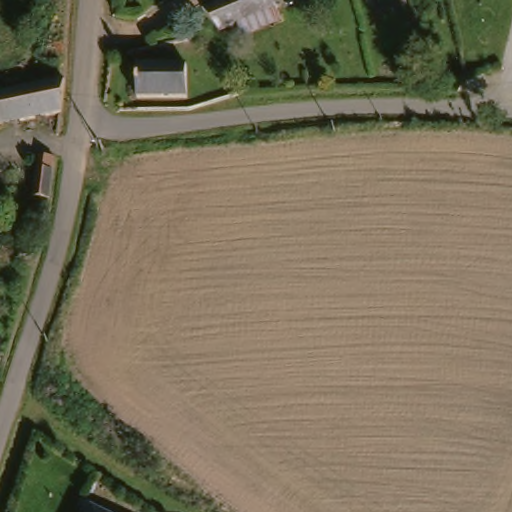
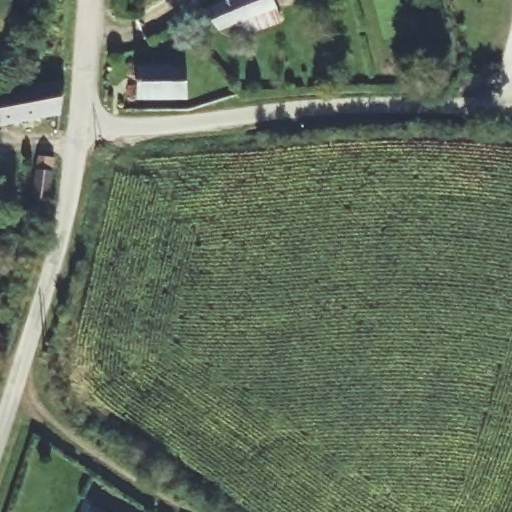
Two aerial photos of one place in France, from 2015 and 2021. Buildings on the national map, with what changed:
unchanged [(214,0),(268,0),(273,15),(226,29),(215,33),(203,3),(214,0)]
unchanged [(134,66),(184,65),(183,94),(133,96),(134,66)]
unchanged [(3,84),(57,70),(54,108),(0,122),(0,85),(3,84)]
unchanged [(45,200),(26,197),(35,158),(53,162),(45,200)]

